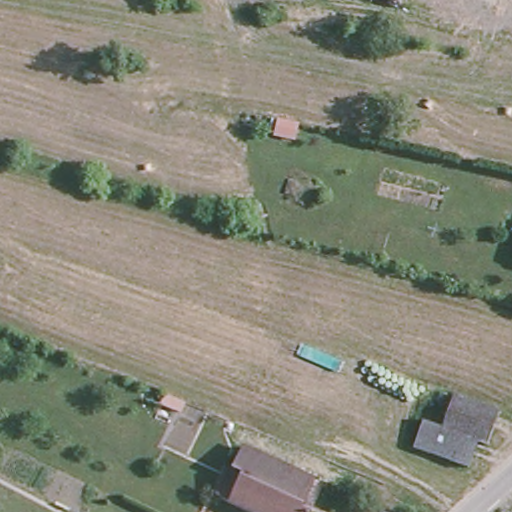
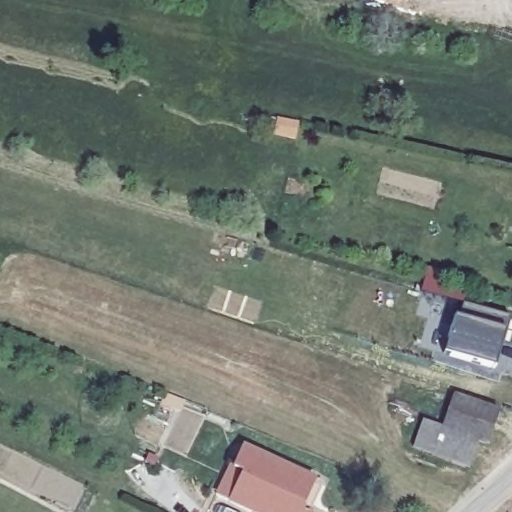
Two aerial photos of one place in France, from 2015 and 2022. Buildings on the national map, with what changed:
new [(512,323),(497,373),(437,356),(449,315),(454,317),(460,300),(512,315),(512,323)]
unchanged [(469,471),(413,451),(423,425),(441,431),(453,400),(499,416),(488,449),(479,446),(469,471)]
unchanged [(305,512),(247,512),(224,502),(211,495),(225,466),(228,468),(239,446),(309,480),(318,484),(305,512)]

